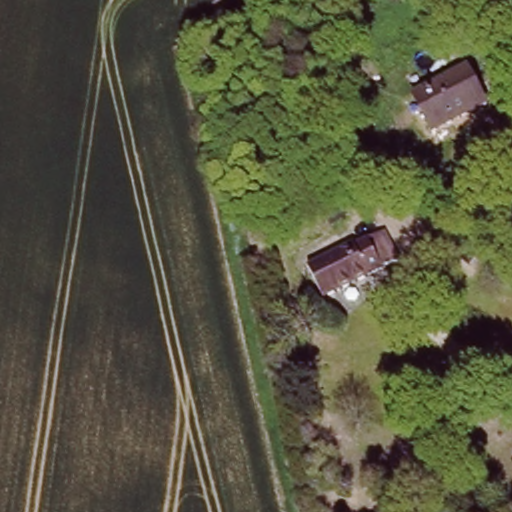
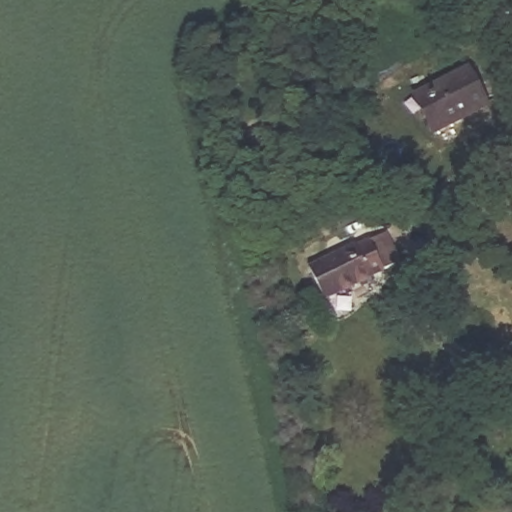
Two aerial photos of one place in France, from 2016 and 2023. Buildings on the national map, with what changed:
unchanged [(434,131),(414,93),(467,66),(486,104),(434,131)]
unchanged [(318,297),(303,262),(352,240),(354,244),(384,231),(398,262),(318,297)]

